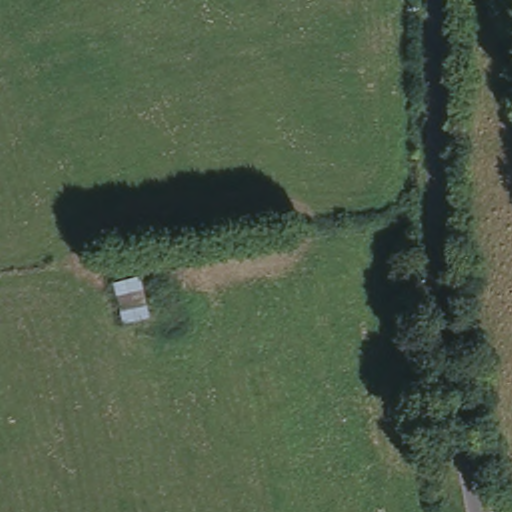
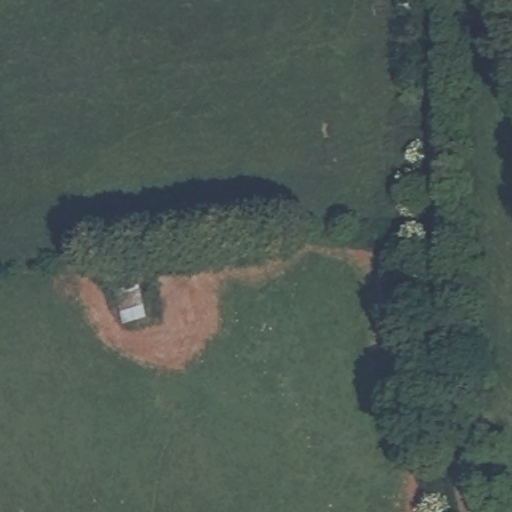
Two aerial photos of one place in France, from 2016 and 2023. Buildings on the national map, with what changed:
unchanged [(114,286),(139,281),(150,324),(124,328),(114,286)]

